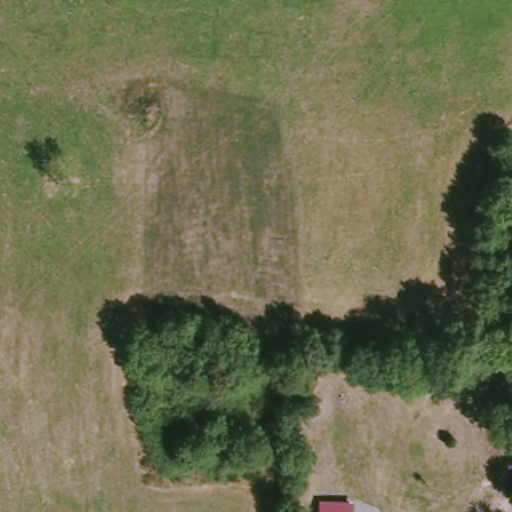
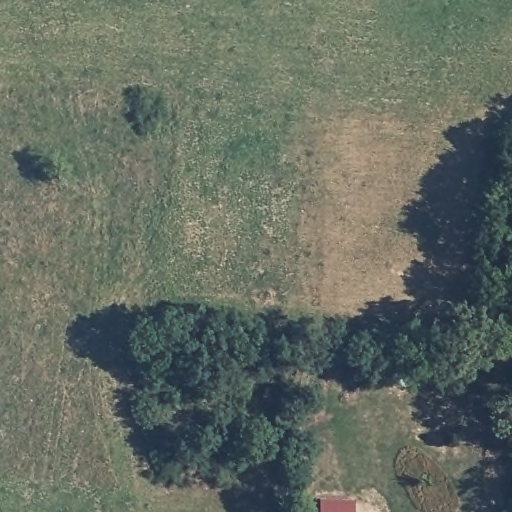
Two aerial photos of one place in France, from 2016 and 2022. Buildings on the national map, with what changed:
unchanged [(319,499),(355,501),(354,512),(318,512),(319,499)]

